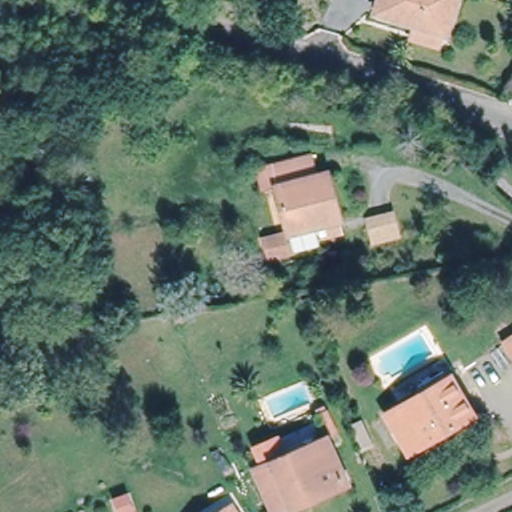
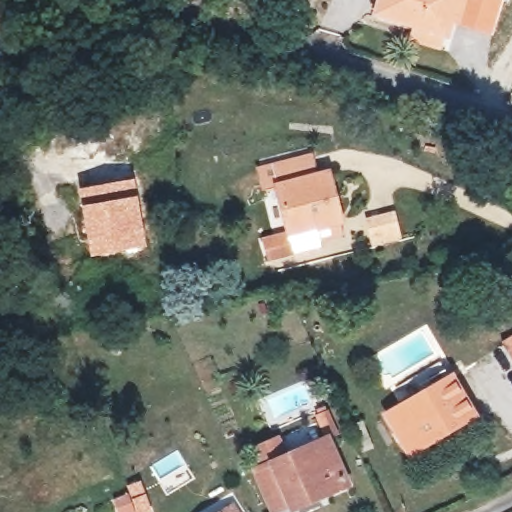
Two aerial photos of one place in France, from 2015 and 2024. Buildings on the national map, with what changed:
unchanged [(446,36),(377,15),(381,0),(457,0),(446,36)]
new [(450,23),(457,0),(502,0),(493,35),(450,23)]
unchanged [(261,185),(257,166),(310,154),(313,172),(273,182),(261,185)]
unchanged [(291,247),(288,235),(273,182),(313,172),(325,169),(340,221),(343,234),(291,247)]
new [(135,176),(147,246),(90,256),(77,188),(135,176)]
unchanged [(388,413),(452,376),(472,413),(410,450),(388,413)]
unchanged [(260,471),(328,443),(346,485),(322,495),(321,491),(277,510),(260,471)]
unchanged [(239,512),(217,512),(233,502),(239,512)]

